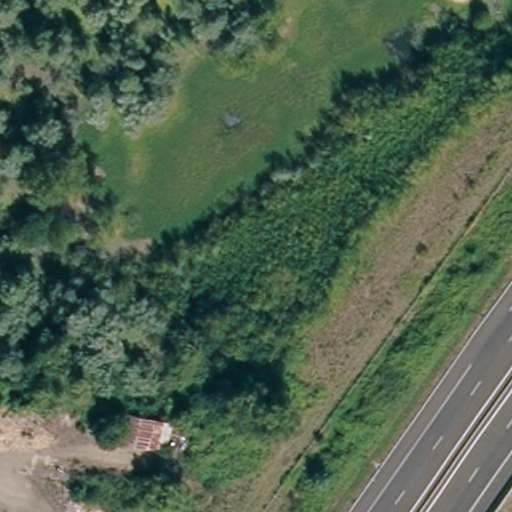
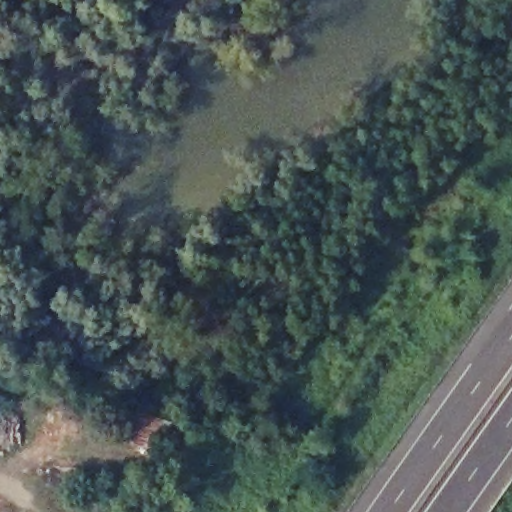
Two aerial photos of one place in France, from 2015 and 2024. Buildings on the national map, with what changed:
unchanged [(130,407),(178,420),(169,451),(120,438),(130,407)]

